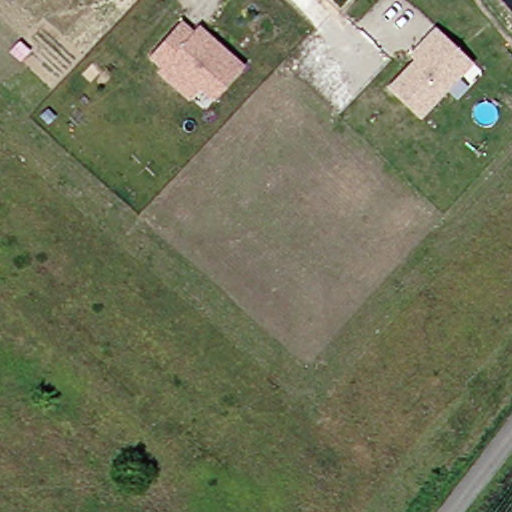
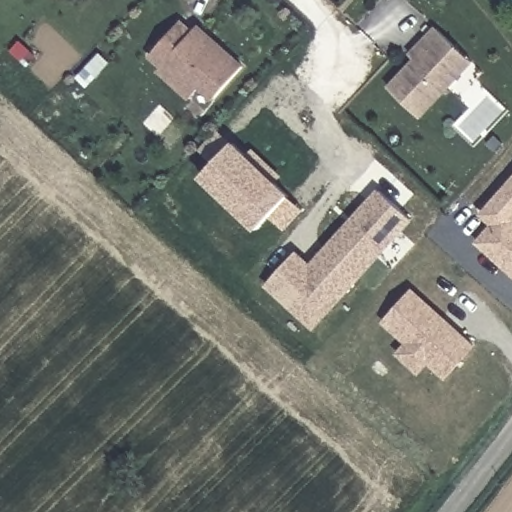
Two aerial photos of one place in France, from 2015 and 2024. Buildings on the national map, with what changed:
unchanged [(157,75),(161,70),(149,60),(180,26),(192,37),(197,31),(216,48),(245,75),(212,105),(199,92),(189,104),(157,75)]
unchanged [(385,88),(414,58),(410,54),(425,39),(436,28),(459,50),(470,61),(460,72),(415,117),(385,88)]
new [(233,142),(290,195),(258,229),(201,176),(233,142)]
new [(494,225),(483,215),(512,182),(512,275),(477,244),(494,225)]
new [(380,190),(412,219),(314,327),(266,285),(295,253),(311,266),(329,246),(380,190)]
new [(398,355),(405,343),(382,322),(413,288),(478,345),(447,380),(431,363),(419,375),(398,355)]

